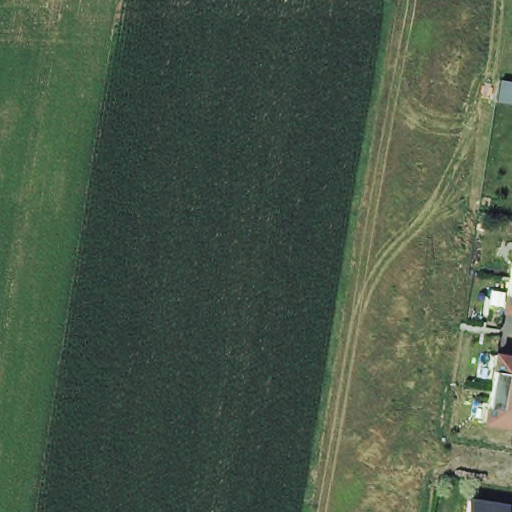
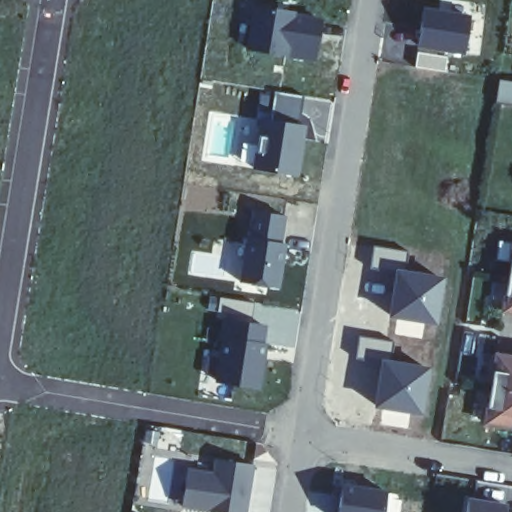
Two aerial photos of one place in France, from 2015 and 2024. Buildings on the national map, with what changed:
new [(322,19),(316,63),(248,55),(252,9),(322,19)]
new [(471,14),(466,58),(452,57),(446,75),(412,68),(424,10),(471,14)]
new [(512,84),(512,106),(499,103),(499,82),(512,84)]
new [(296,179),(254,173),(261,122),(304,126),(296,179)]
new [(293,212),(278,288),(236,286),(253,209),(293,212)]
unchanged [(499,314),(509,240),(512,240),(512,316),(499,314)]
new [(408,251),(406,270),(446,277),(439,325),(392,318),(395,273),(371,270),(373,247),(408,251)]
new [(269,322),(261,388),(220,383),(228,317),(269,322)]
new [(393,343),(391,360),(434,366),(427,418),(376,410),(381,366),(354,361),(359,337),(393,343)]
unchanged [(482,426),(493,352),(512,355),(512,431),(482,426)]
new [(247,512),(201,512),(182,508),(188,467),(214,473),(216,458),(256,467),(247,512)]
new [(390,491),(387,512),(336,512),(339,484),(390,491)]
unchanged [(466,500),(503,505),(502,512),(465,512),(466,500)]

